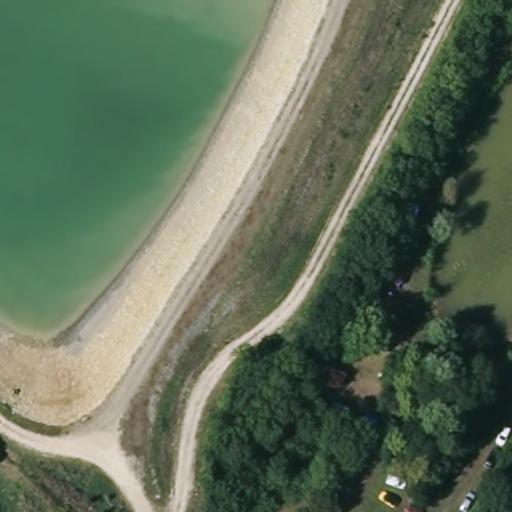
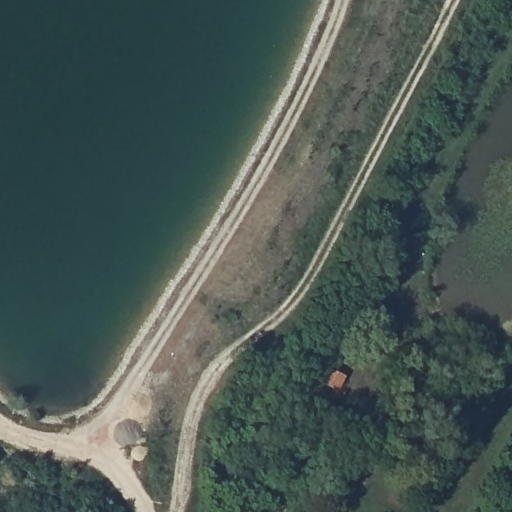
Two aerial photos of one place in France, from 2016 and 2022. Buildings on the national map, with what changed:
unchanged [(348,372),(341,388),(321,380),(312,397),(299,391),(316,355),(348,372)]

